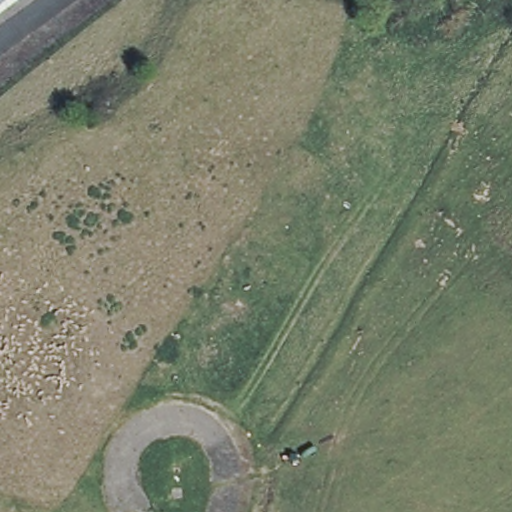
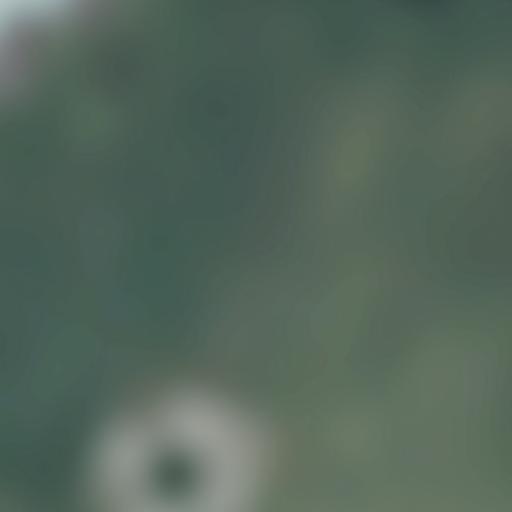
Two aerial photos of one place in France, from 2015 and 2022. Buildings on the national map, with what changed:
unchanged [(18,0),(0,12),(0,0),(18,0)]

